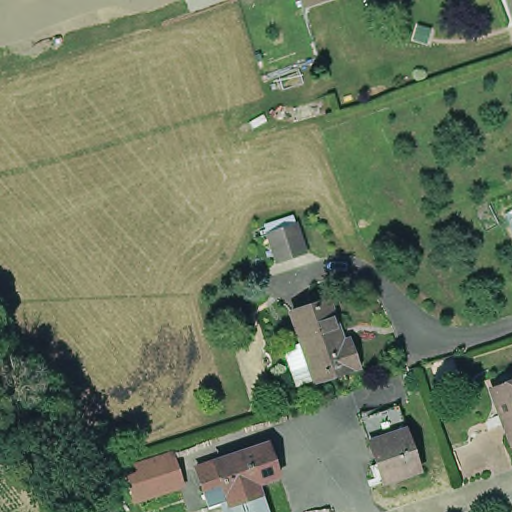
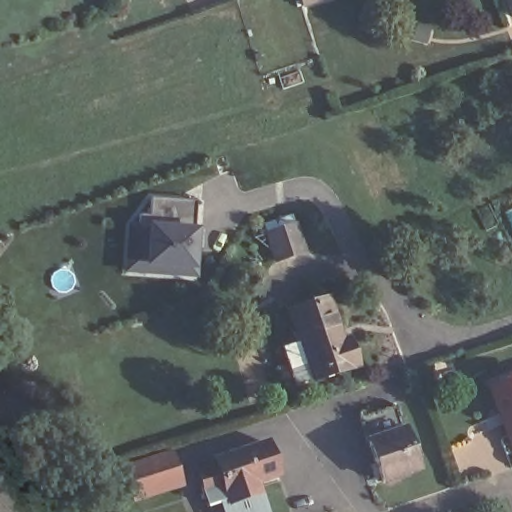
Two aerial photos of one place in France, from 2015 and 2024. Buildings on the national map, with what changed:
unchanged [(506,0),(512,0),(512,16),(506,0)]
new [(193,229),(199,229),(196,271),(196,280),(123,275),(127,224),(140,225),(140,215),(148,215),(150,197),(195,200),(193,229)]
unchanged [(271,263),(261,233),(294,220),(305,250),(271,263)]
unchanged [(299,313),(332,303),(346,346),(355,345),(362,368),(302,387),(290,350),(308,345),(299,313)]
unchanged [(505,438),(503,433),(487,389),(512,381),(512,435),(505,438)]
unchanged [(388,483),(375,445),(368,421),(402,410),(410,433),(423,472),(388,483)]
unchanged [(230,500),(228,495),(209,501),(196,462),(215,456),(268,439),(278,470),(255,477),(259,490),(230,500)]
unchanged [(120,467),(129,465),(151,457),(163,453),(175,485),(136,498),(131,500),(127,490),(120,467)]

